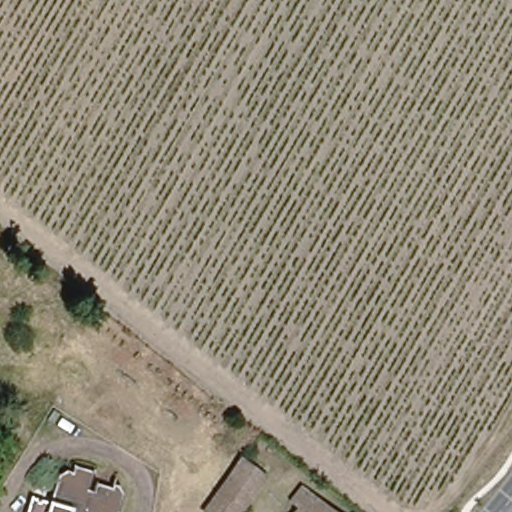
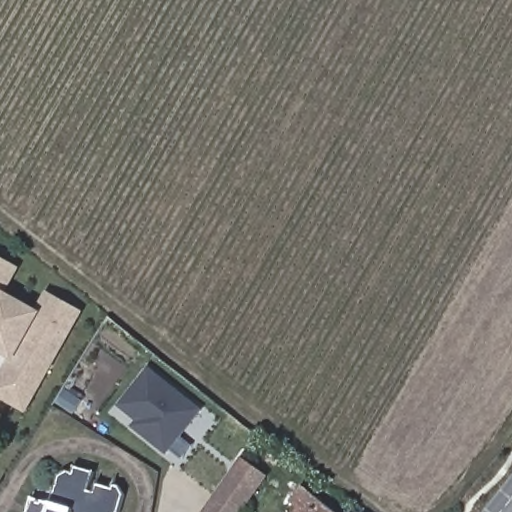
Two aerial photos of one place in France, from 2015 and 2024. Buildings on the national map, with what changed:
new [(0,290),(0,261),(12,267),(0,290)]
new [(44,297),(79,317),(27,412),(0,396),(0,374),(10,357),(0,351),(0,293),(36,312),(44,297)]
new [(167,457),(131,427),(136,420),(119,407),(150,367),(203,411),(167,457)]
unchanged [(265,478),(241,512),(207,512),(222,489),(242,462),(265,478)]
unchanged [(92,470),(86,488),(90,490),(93,482),(110,487),(112,482),(117,483),(123,494),(118,512),(25,512),(30,496),(49,501),(56,478),(65,473),(69,475),(72,464),(92,470)]
unchanged [(338,512),(299,512),(302,508),(295,501),(307,487),(338,512)]

